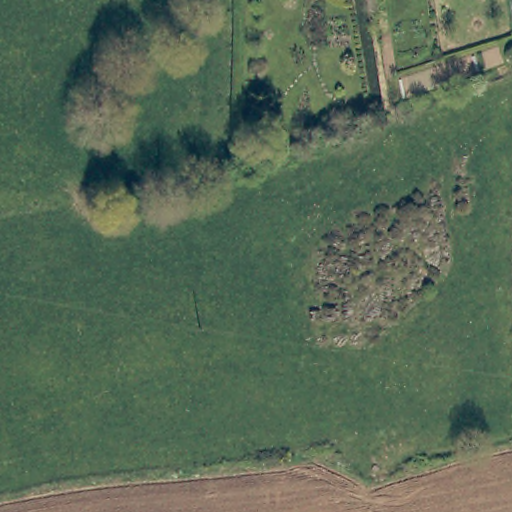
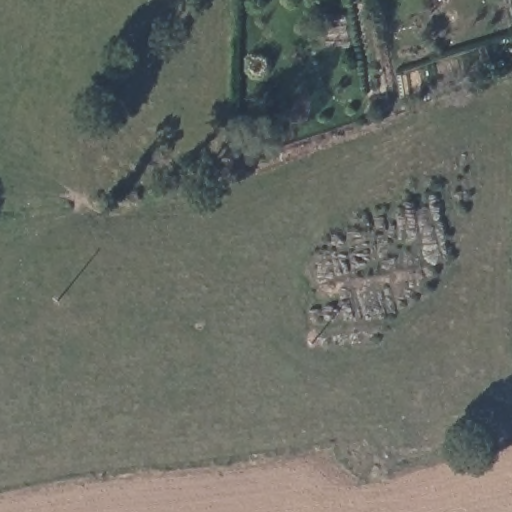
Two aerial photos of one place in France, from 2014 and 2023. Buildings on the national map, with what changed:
[]

